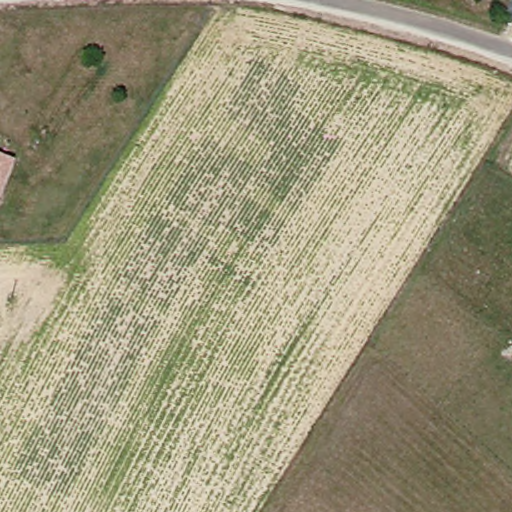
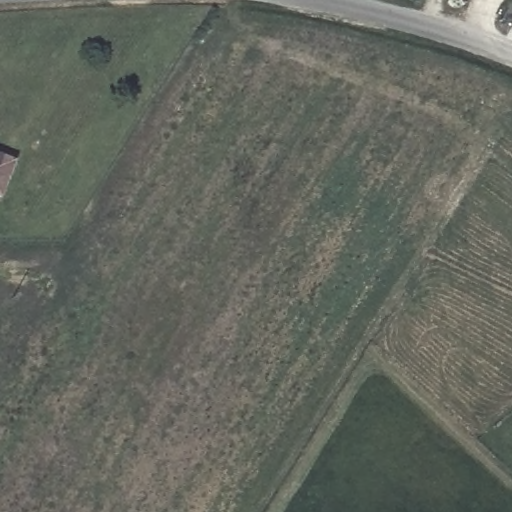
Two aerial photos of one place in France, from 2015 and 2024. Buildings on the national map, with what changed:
unchanged [(12,174),(0,193),(0,166),(12,174)]

